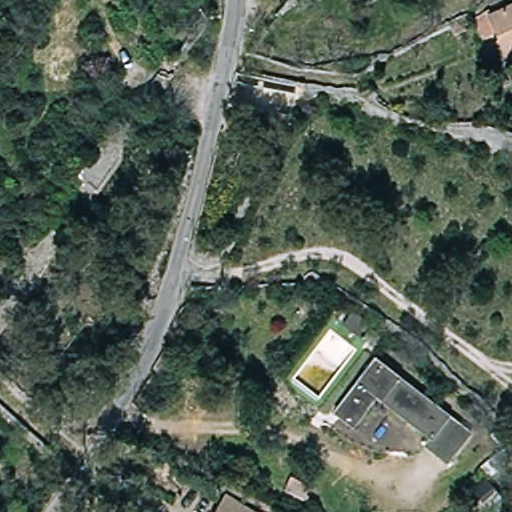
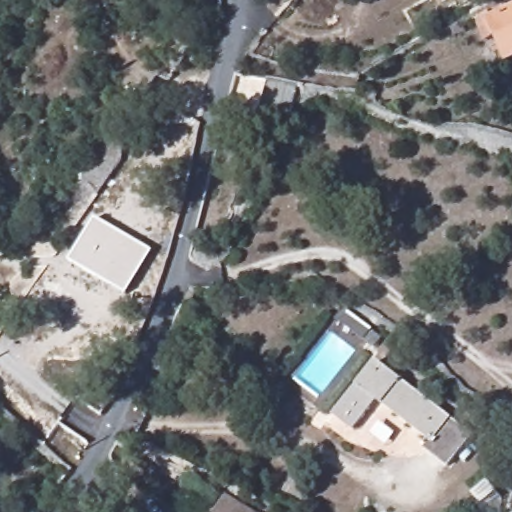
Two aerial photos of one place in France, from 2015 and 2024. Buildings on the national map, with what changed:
unchanged [(498,44),(489,47),(478,23),(512,8),(512,59),(507,61),(498,44)]
new [(128,295),(69,261),(95,216),(154,251),(128,295)]
unchanged [(358,321),(357,323),(371,333),(362,344),(349,333),(347,335),(330,322),(342,309),(358,321)]
unchanged [(443,468),(418,449),(424,441),(374,403),(349,432),(325,413),(365,362),(467,440),(443,468)]
unchanged [(224,498),(249,512),(217,512),(224,498)]

